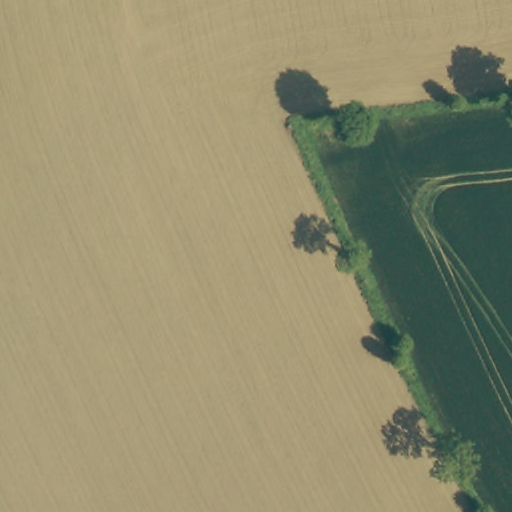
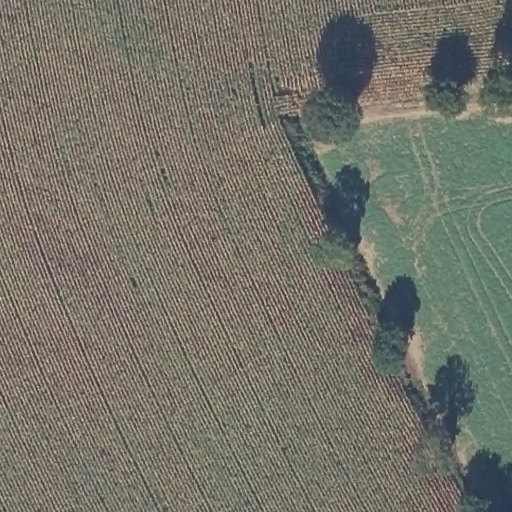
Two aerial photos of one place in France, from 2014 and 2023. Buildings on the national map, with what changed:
[]

